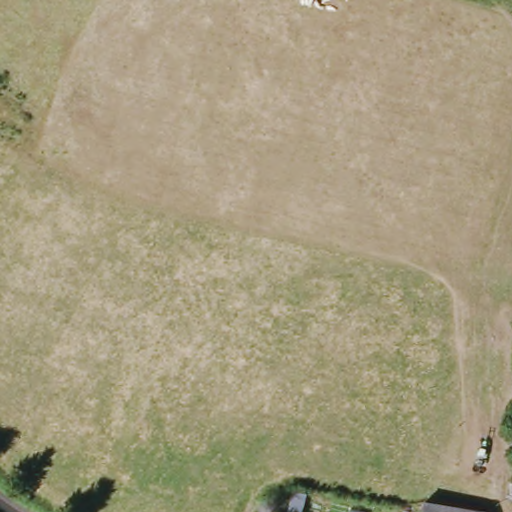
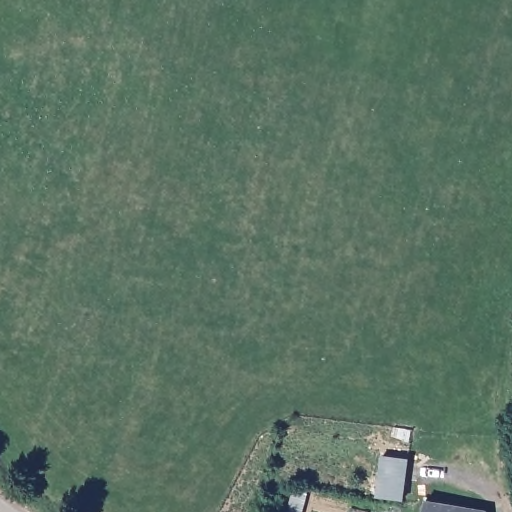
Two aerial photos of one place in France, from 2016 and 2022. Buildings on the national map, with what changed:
new [(408,459),(403,501),(377,497),(381,455),(408,459)]
unchanged [(473,512),(426,512),(428,503),(473,512)]

